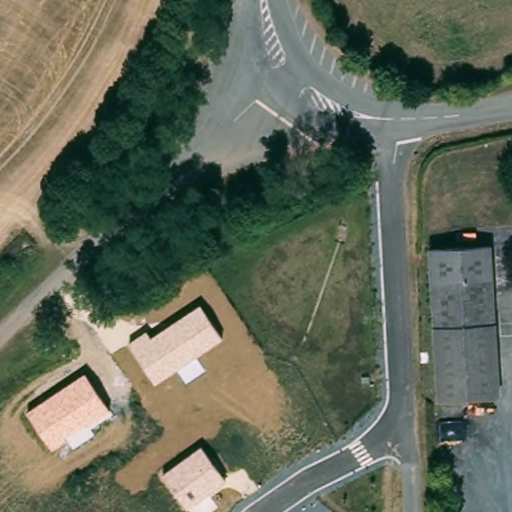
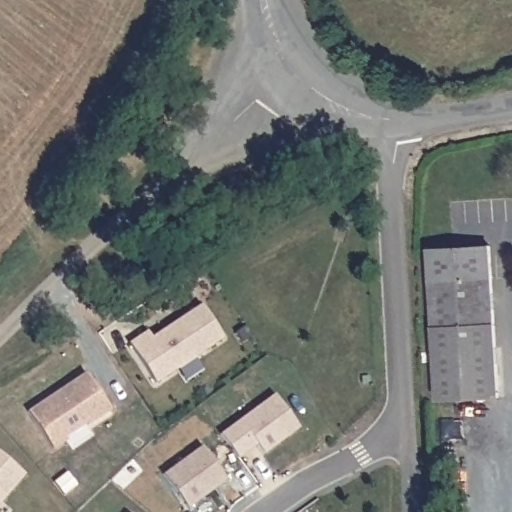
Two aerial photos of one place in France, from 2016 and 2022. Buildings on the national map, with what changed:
unchanged [(494,393),(434,394),(434,241),(493,241),(494,393)]
unchanged [(222,338),(155,383),(130,343),(147,331),(152,337),(200,304),(222,338)]
unchanged [(110,410),(51,448),(28,412),(85,373),(110,410)]
new [(219,434),(274,394),(300,428),(263,454),(255,445),(238,459),(219,434)]
unchanged [(225,479),(185,509),(163,475),(201,446),(225,479)]
new [(0,454),(24,475),(0,502),(0,454)]

